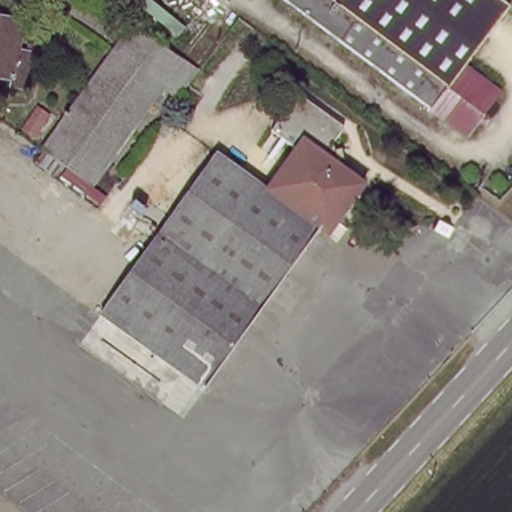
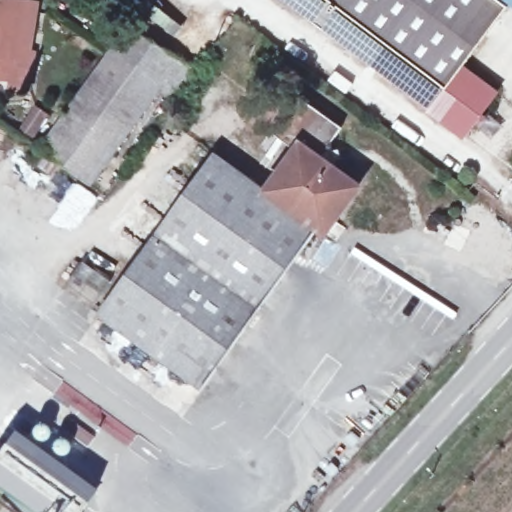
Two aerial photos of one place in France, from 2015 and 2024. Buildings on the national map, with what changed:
unchanged [(496,0),(504,6),(466,67),(493,91),(479,112),(485,120),(479,130),(471,122),(464,134),(281,0),(496,0)]
unchanged [(507,0),(512,0),(512,4),(507,0)]
unchanged [(14,51),(33,52),(31,89),(10,89),(10,82),(0,81),(0,20),(15,21),(14,51)]
unchanged [(191,69),(175,93),(159,82),(94,180),(45,142),(125,24),(191,69)]
unchanged [(335,154),(338,167),(365,186),(341,219),(333,213),(320,231),(259,318),(204,396),(100,322),(156,240),(213,157),(214,155),(266,191),(295,149),(271,131),(280,118),(296,93),(343,129),(333,142),(335,154)]
unchanged [(451,254),(434,243),(441,231),(458,242),(451,254)]
new [(89,497),(78,512),(26,512),(0,494),(0,453),(10,440),(89,497)]

